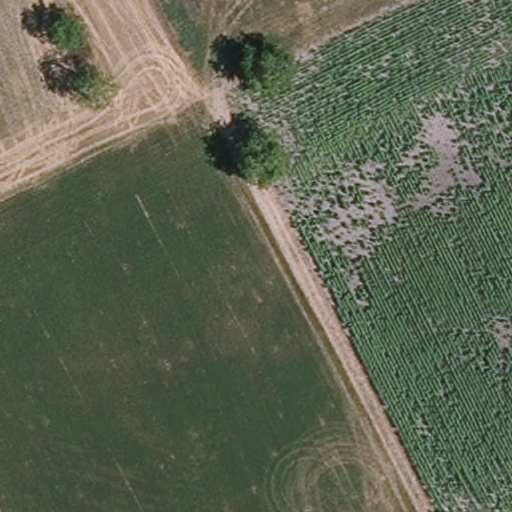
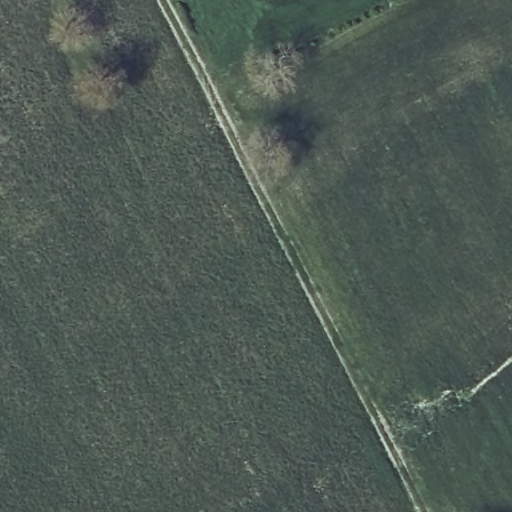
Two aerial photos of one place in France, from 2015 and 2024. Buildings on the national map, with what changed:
[]

